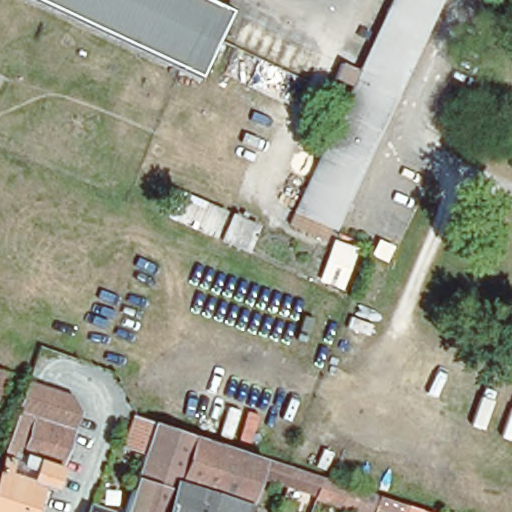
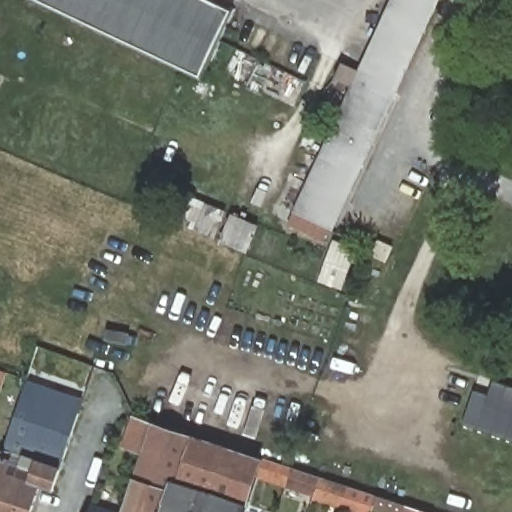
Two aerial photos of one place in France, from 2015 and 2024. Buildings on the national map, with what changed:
unchanged [(32,0),(206,0),(232,12),(200,79),(32,0)]
unchanged [(333,81),(342,64),(358,72),(392,0),(440,0),(334,232),(327,244),(326,243),(287,227),(295,210),(293,210),(350,89),(333,81)]
unchanged [(162,218),(173,189),(260,222),(249,252),(162,218)]
unchanged [(351,258),(342,282),(320,272),(328,249),(351,258)]
demolished [(130,334),(144,339),(138,360),(123,355),(130,334)]
unchanged [(28,512),(0,512),(0,461),(28,377),(74,393),(80,407),(59,472),(52,495),(36,490),(28,512)]
new [(493,379),(512,385),(512,442),(462,426),(474,389),(488,394),(493,379)]
unchanged [(370,512),(357,512),(341,507),(311,497),(312,494),(284,484),(255,475),(243,512),(123,512),(143,450),(126,445),(135,416),(152,422),(260,457),(282,465),(289,467),(318,477),(347,487),(376,496),(403,505),(405,506),(424,512),(384,512),(372,508),(370,512)]
unchanged [(91,506),(109,512),(89,512),(91,506)]

